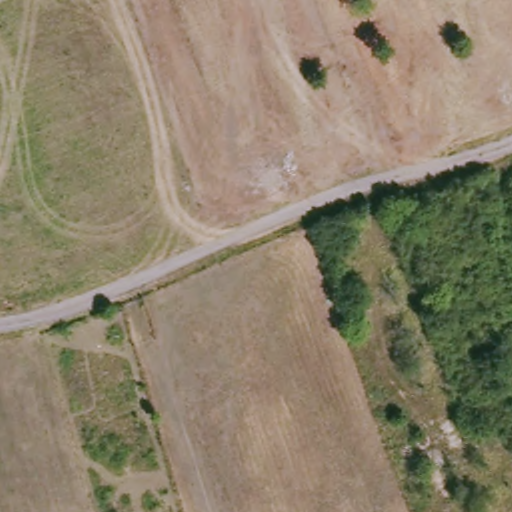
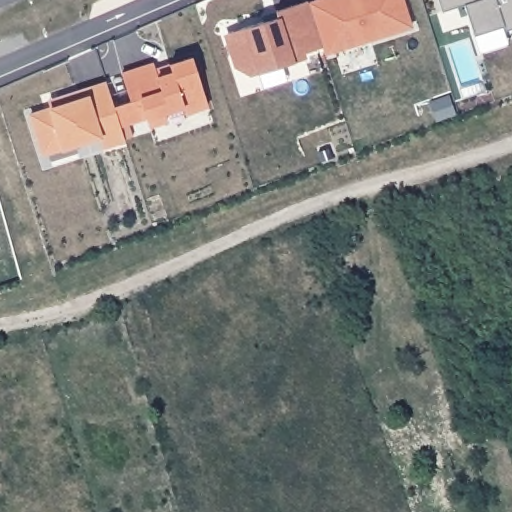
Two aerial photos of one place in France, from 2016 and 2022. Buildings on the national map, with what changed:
new [(303,52),(305,58),(253,74),(240,67),(228,32),(278,16),(276,10),(307,0),(322,46),(303,52)]
new [(325,54),(308,3),(316,0),(325,0),(326,3),(335,0),(403,0),(412,26),(325,54)]
new [(442,11),(438,0),(512,0),(512,28),(506,31),(504,26),(474,36),(464,5),(442,11)]
new [(184,114),(181,106),(162,113),(165,121),(148,126),(145,115),(120,123),(114,106),(107,82),(122,77),(130,101),(122,74),(154,64),(158,77),(172,73),(170,65),(192,58),(208,106),(184,114)]
new [(172,73),(158,77),(156,70),(170,65),(172,73)]
new [(102,146),(99,136),(43,154),(31,115),(60,105),(51,108),(48,101),(58,98),(107,82),(125,140),(102,146)]
demolished [(256,172),(283,166),(287,188),(265,195),(256,172)]

